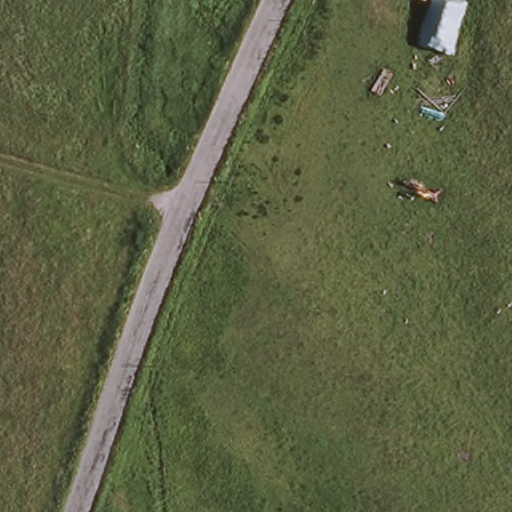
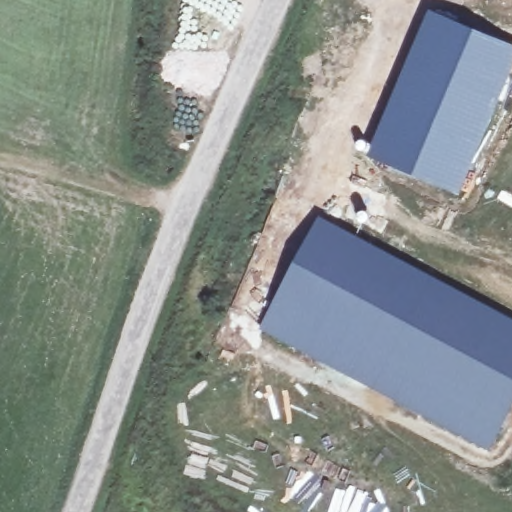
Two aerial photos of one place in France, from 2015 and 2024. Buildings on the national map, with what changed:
new [(447,13),(512,40),(512,91),(478,172),(472,187),(390,151),(391,150),(447,13)]
new [(325,225),(347,237),(302,317),(415,377),(403,398),(270,328),(325,225)]
new [(347,237),(512,323),(512,414),(495,447),(403,398),(415,377),(302,317),(347,237)]

